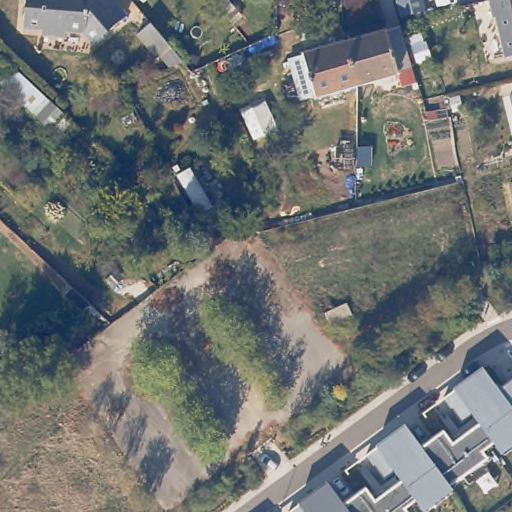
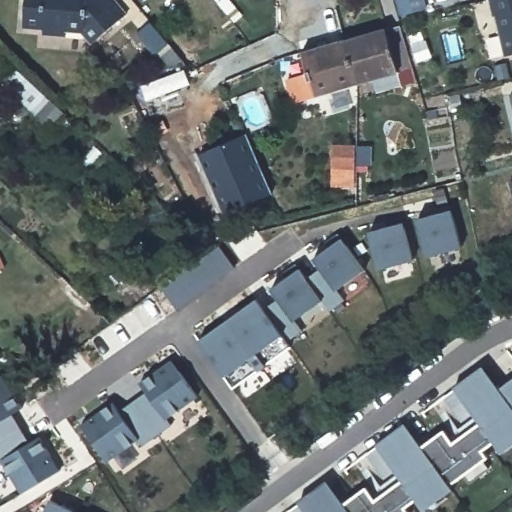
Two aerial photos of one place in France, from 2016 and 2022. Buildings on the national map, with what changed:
unchanged [(91,44),(84,33),(65,31),(65,38),(42,36),(42,29),(23,28),(26,0),(111,0),(125,15),(91,44)]
unchanged [(395,0),(425,0),(426,7),(398,15),(395,0)]
unchanged [(512,0),(512,56),(504,58),(495,18),(492,18),(488,0),(490,0),(512,0)]
unchanged [(424,58),(410,61),(412,73),(315,101),(302,59),(415,25),(424,58)]
unchanged [(55,106),(41,120),(7,88),(21,74),(55,106)]
unchanged [(510,95),(512,95),(512,104),(510,95)]
unchanged [(381,159),(356,166),(356,146),(378,143),(381,159)]
unchanged [(510,183),(512,182),(512,188),(510,183)]
new [(452,209),(461,248),(428,257),(417,218),(452,209)]
new [(403,222),(411,259),(378,268),(368,229),(403,222)]
new [(256,297),(262,305),(276,295),(270,287),(298,267),(305,275),(318,266),(312,258),(341,238),(362,269),(335,288),(344,299),(326,311),(318,302),(295,320),(301,330),(288,340),(290,346),(232,387),(223,377),(197,339),(256,297)]
new [(219,244),(235,265),(176,309),(160,288),(219,244)]
demolished [(352,316),(330,327),(325,313),(346,303),(352,316)]
new [(113,399),(119,408),(145,389),(138,381),(171,358),(199,396),(169,418),(171,424),(140,444),(137,441),(107,462),(80,424),(113,399)]
unchanged [(503,453),(499,448),(450,484),(453,490),(425,511),(421,506),(413,512),(305,512),(299,503),(327,481),(343,503),(366,486),(376,499),(400,481),(376,445),(403,424),(422,447),(447,429),(455,441),(480,423),(453,388),(482,367),(500,388),(512,378),(512,446),(503,453)]
new [(25,406),(13,414),(30,442),(41,436),(60,469),(20,493),(1,461),(0,461),(0,374),(5,372),(25,406)]
new [(50,499),(78,512),(44,512),(50,499)]

